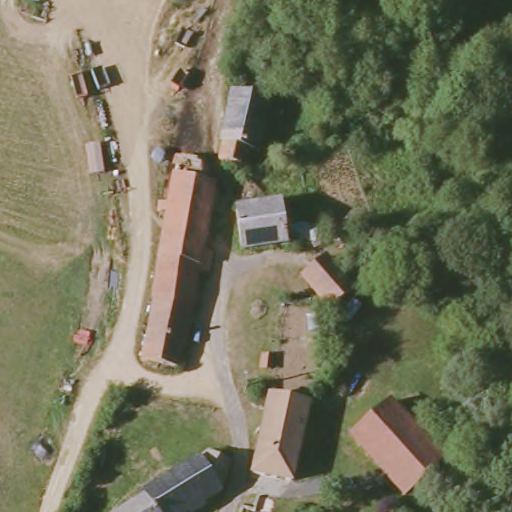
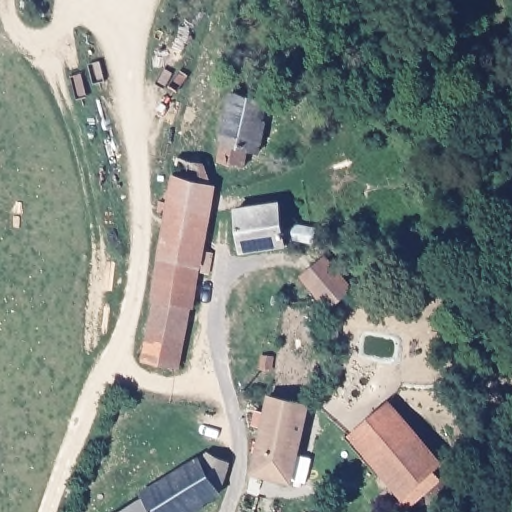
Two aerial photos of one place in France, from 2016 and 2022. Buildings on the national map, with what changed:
unchanged [(265,98),(255,149),(244,148),(241,164),(220,159),(222,143),(218,142),(232,88),(265,98)]
unchanged [(178,152),(198,156),(213,178),(218,180),(200,266),(156,256),(178,152)]
unchanged [(282,222),(319,229),(315,246),(285,242),(285,250),(242,252),(237,208),(258,206),(279,204),(282,222)]
unchanged [(350,284),(329,302),(323,297),(303,272),(325,252),(350,284)]
unchanged [(192,305),(188,305),(182,335),(175,367),(137,358),(150,298),(146,297),(153,269),(156,256),(200,266),(192,305)]
unchanged [(310,402),(289,482),(251,472),(260,442),(267,404),(271,392),(310,402)]
unchanged [(439,454),(403,486),(355,429),(388,398),(439,454)]
unchanged [(217,501),(196,512),(123,512),(137,504),(125,480),(146,468),(157,490),(195,468),(203,460),(223,469),(217,501)]

